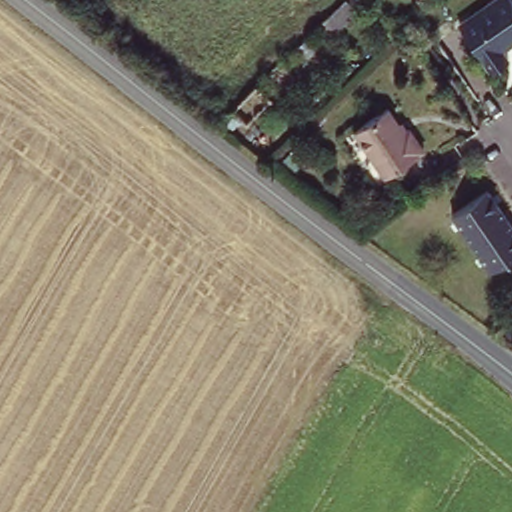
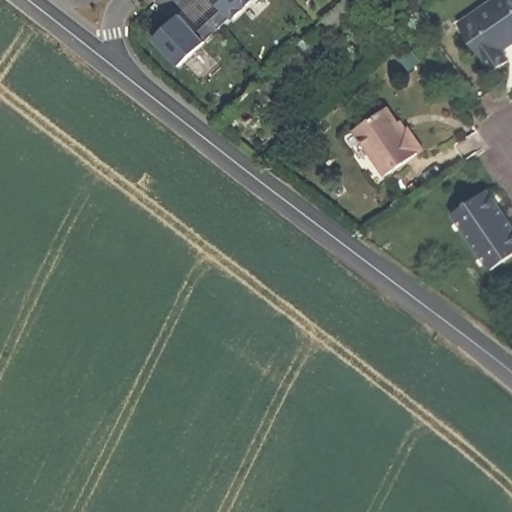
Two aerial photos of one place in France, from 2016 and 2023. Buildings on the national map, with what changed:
new [(229,17),(216,30),(208,21),(221,9),(213,0),(252,0),(231,20),(229,17)]
unchanged [(359,15),(338,37),(323,20),(345,0),(359,15)]
unchanged [(510,0),(512,3),(512,43),(501,50),(507,61),(491,72),(459,25),(494,0),(510,0)]
new [(177,66),(151,39),(178,14),(195,32),(208,21),(216,30),(177,66)]
unchanged [(270,100),(244,125),(238,119),(224,133),(212,124),(255,84),(270,100)]
unchanged [(382,112),(401,135),(406,131),(423,150),(388,177),(353,136),(382,112)]
unchanged [(512,251),(490,266),(452,210),(487,187),(512,224),(512,251)]

